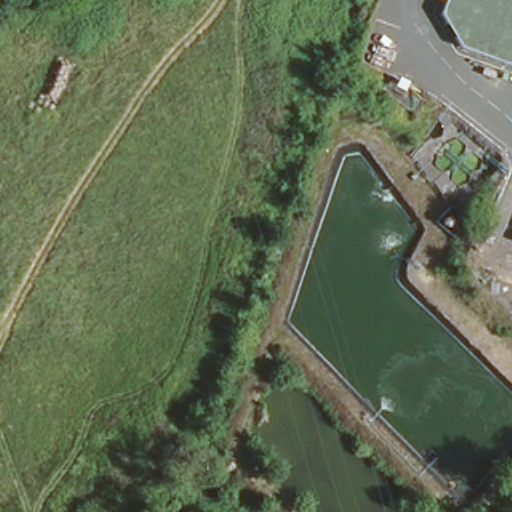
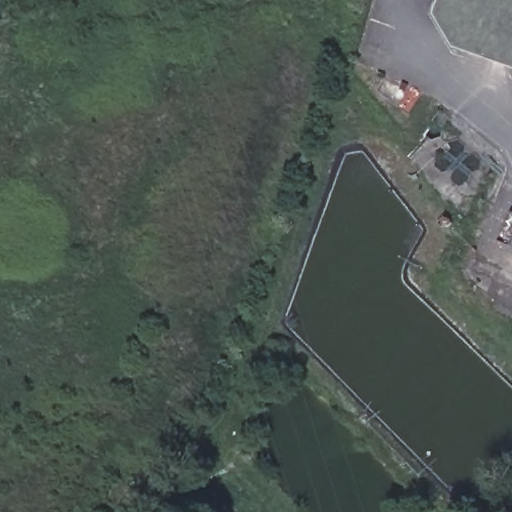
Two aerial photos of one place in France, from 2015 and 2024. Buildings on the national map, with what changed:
unchanged [(455,50),(434,15),(440,0),(512,0),(512,70),(455,50)]

